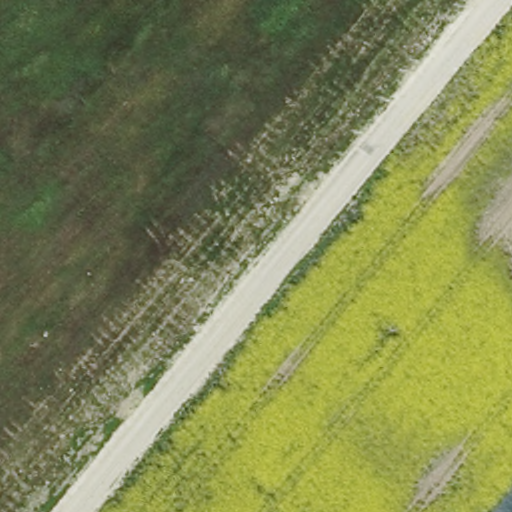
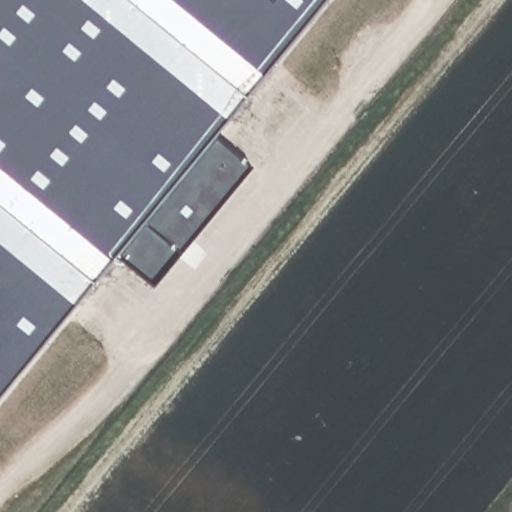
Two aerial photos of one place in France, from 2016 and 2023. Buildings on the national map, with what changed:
new [(217,140),(253,166),(157,282),(118,259),(0,401),(0,0),(333,0),(217,140)]

